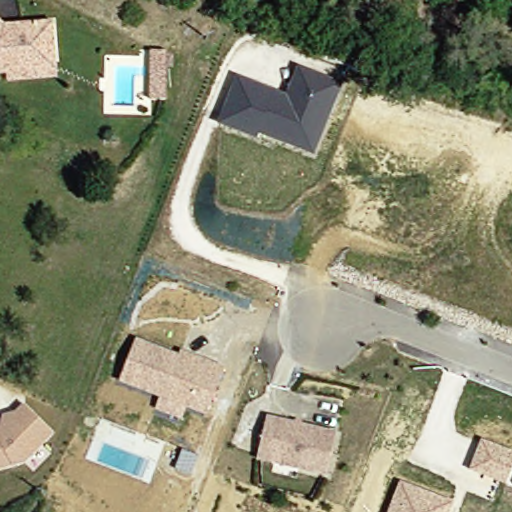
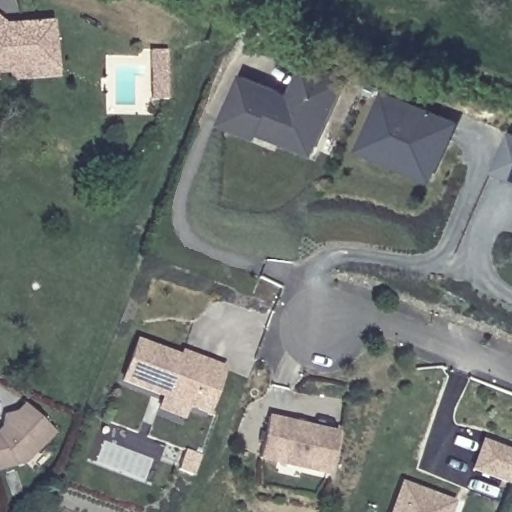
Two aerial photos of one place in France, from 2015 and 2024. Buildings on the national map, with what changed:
unchanged [(64,79),(15,85),(14,77),(0,79),(0,21),(11,29),(26,27),(57,24),(62,64),(63,72),(64,79)]
unchanged [(168,49),(169,99),(154,99),(153,49),(168,49)]
unchanged [(315,154),(259,133),(257,139),(216,124),(236,75),(286,93),(296,65),(343,82),(315,154)]
new [(379,92),(459,123),(434,181),(356,151),(379,92)]
new [(512,135),(512,181),(490,172),(506,132),(512,135)]
unchanged [(210,410),(126,379),(141,338),(184,355),(186,350),(211,359),(227,365),(210,410)]
unchanged [(0,469),(0,430),(4,415),(16,411),(24,403),(53,430),(25,461),(0,469)]
unchanged [(269,417),(338,432),(329,473),(260,458),(269,417)]
unchanged [(475,471),(486,443),(512,453),(512,479),(510,484),(475,471)]
unchanged [(394,512),(405,481),(456,500),(451,512),(394,512)]

